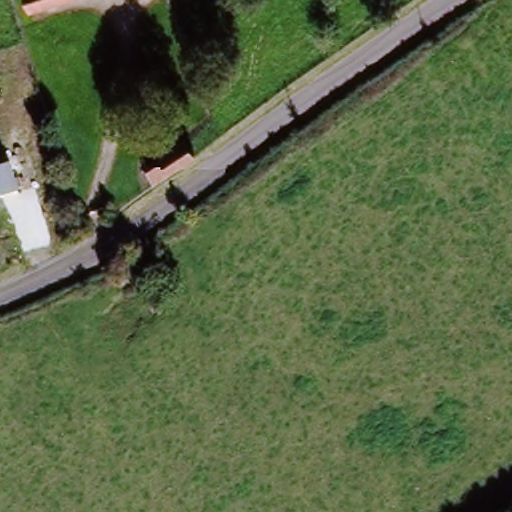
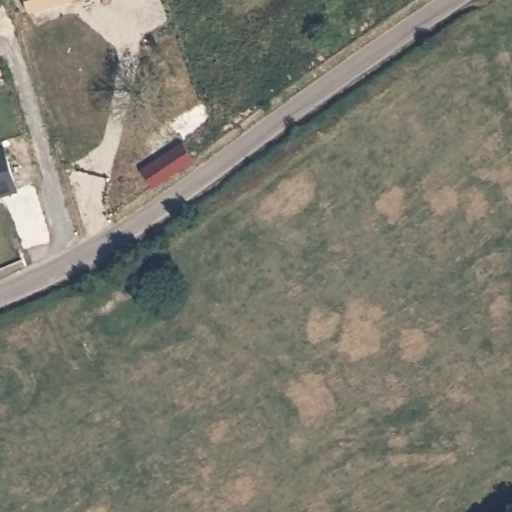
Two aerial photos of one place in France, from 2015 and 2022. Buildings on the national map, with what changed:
unchanged [(71,0),(25,15),(20,0),(71,0)]
unchanged [(5,146),(17,192),(0,195),(0,148),(5,146)]
unchanged [(145,176),(178,151),(188,164),(155,189),(145,176)]

